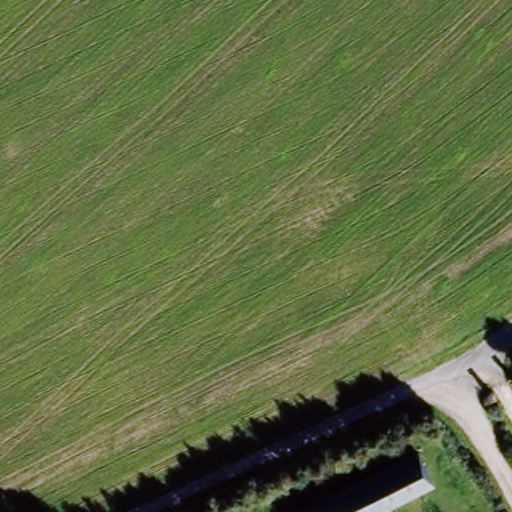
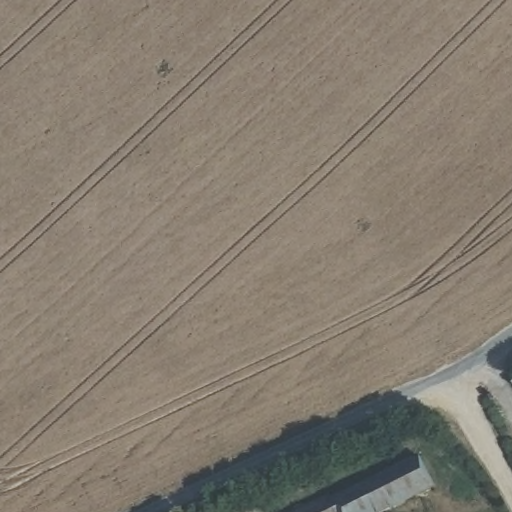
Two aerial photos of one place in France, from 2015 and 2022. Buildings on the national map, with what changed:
unchanged [(430,491),(385,512),(277,512),(324,490),(328,497),(361,483),(357,474),(393,459),(397,467),(413,460),(430,491)]

